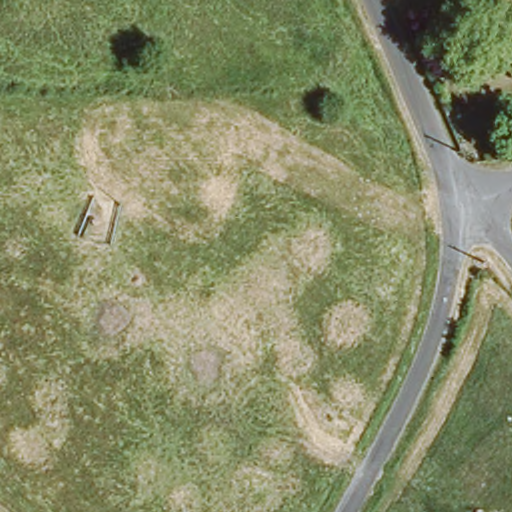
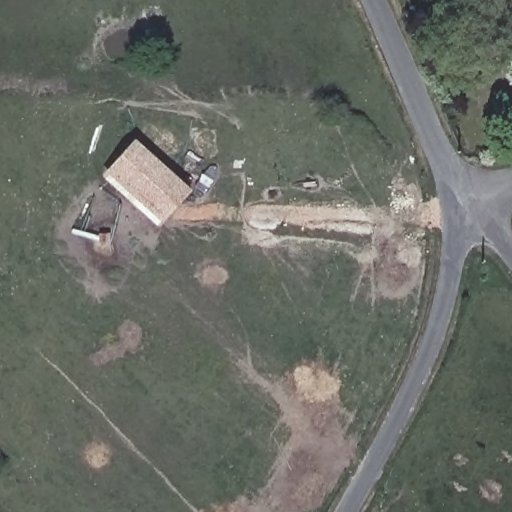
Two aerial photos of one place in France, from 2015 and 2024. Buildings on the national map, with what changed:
new [(160,227),(105,175),(138,138),(194,188),(160,227)]

